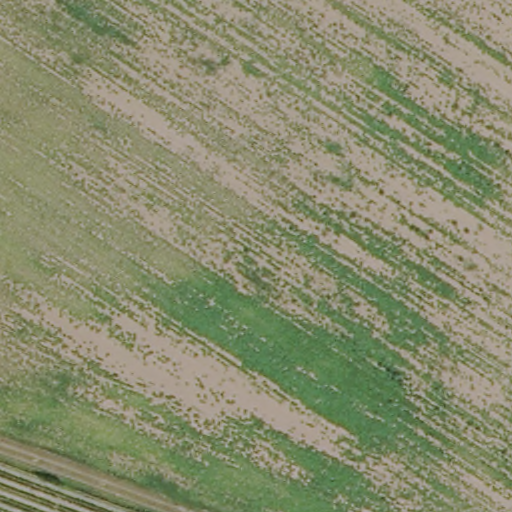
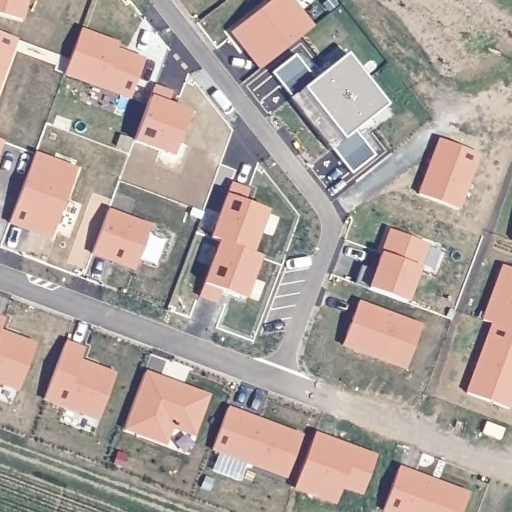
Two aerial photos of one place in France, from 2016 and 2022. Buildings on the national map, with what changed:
new [(21,21),(0,15),(0,0),(27,0),(21,21)]
new [(274,0),(290,0),(313,29),(260,70),(232,33),(274,0)]
new [(80,31),(111,42),(109,48),(145,61),(130,99),(64,74),(80,31)]
new [(15,40),(0,80),(0,34),(15,40)]
new [(296,56),(315,81),(347,56),(388,107),(357,132),(376,158),(352,176),(332,151),(332,152),(291,100),(292,99),(272,74),(296,56)]
new [(154,88),(171,95),(167,106),(189,114),(169,169),(129,153),(154,88)]
new [(1,142),(0,144),(0,141),(1,142)]
new [(440,142),(479,153),(457,211),(420,197),(440,142)]
new [(34,156),(75,172),(50,240),(8,225),(34,156)]
new [(232,187),(249,191),(246,203),(270,209),(250,255),(220,244),(212,241),(232,187)]
new [(107,212),(150,229),(134,271),(91,255),(107,212)]
new [(362,268),(375,273),(391,232),(427,247),(406,305),(355,286),(362,268)]
new [(220,244),(250,255),(260,258),(243,302),(221,293),(217,304),(199,297),(220,244)]
new [(512,269),(512,331),(494,324),(485,321),(505,266),(512,269)]
new [(359,305),(422,328),(406,372),(342,348),(359,305)]
new [(2,322),(0,326),(0,321),(2,322)]
new [(512,331),(512,403),(509,413),(467,397),(494,324),(512,331)]
new [(34,347),(17,392),(0,385),(0,334),(34,347)]
new [(64,345),(82,352),(77,363),(114,377),(97,422),(43,402),(64,345)]
new [(143,375),(207,399),(192,437),(170,430),(164,447),(122,431),(143,375)]
new [(226,412),(259,423),(260,427),(267,430),(272,428),(302,440),(287,481),(211,452),(226,412)]
new [(314,435),(375,457),(361,494),(341,486),(335,503),(294,488),(314,435)]
new [(469,498),(463,512),(383,512),(398,472),(469,498)]

